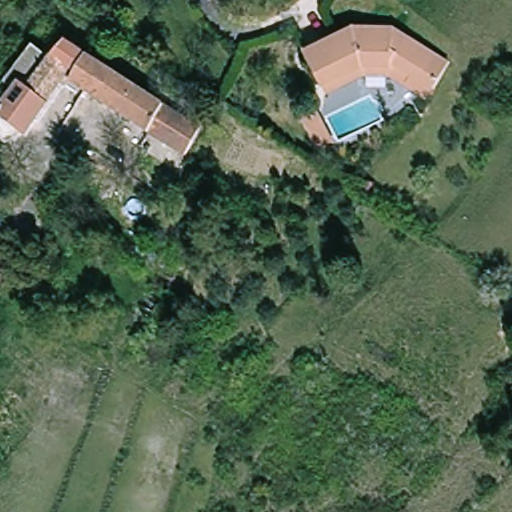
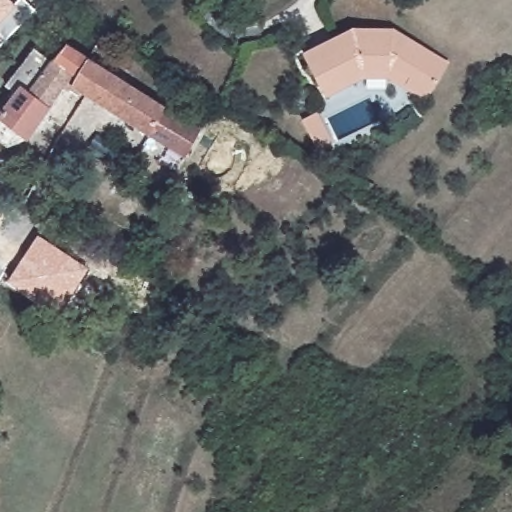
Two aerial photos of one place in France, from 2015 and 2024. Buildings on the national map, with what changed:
new [(19,0),(25,0),(36,10),(6,40),(0,34),(0,0),(11,0),(15,4),(19,0)]
unchanged [(410,88),(396,79),(364,78),(328,97),(325,91),(306,55),(354,30),(395,29),(452,64),(432,97),(430,100),(410,88)]
unchanged [(0,122),(15,99),(6,94),(31,54),(54,68),(65,50),(86,64),(70,89),(64,85),(26,145),(13,155),(0,147),(0,122)]
unchanged [(184,162),(87,100),(70,89),(86,64),(200,137),(184,162)]
unchanged [(336,140),(322,146),(307,115),(321,109),(336,140)]
new [(39,235),(90,268),(57,315),(9,281),(39,235)]
unchanged [(158,256),(153,263),(136,252),(141,245),(158,256)]

